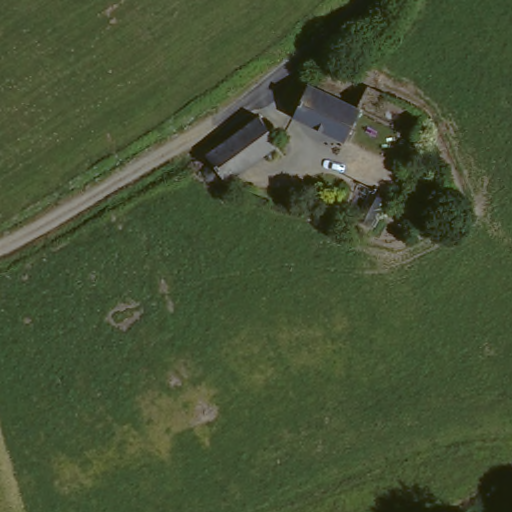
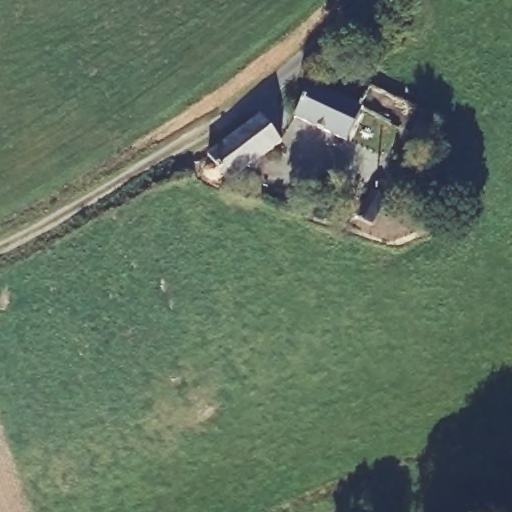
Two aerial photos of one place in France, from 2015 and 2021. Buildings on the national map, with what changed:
unchanged [(312,81),(362,104),(348,136),(297,112),(311,81),(312,81)]
unchanged [(283,140),(231,176),(226,171),(220,173),(212,173),(207,169),(207,166),(209,161),(212,158),(215,156),(210,149),(262,113),(283,140)]
unchanged [(356,217),(370,191),(385,199),(373,223),(371,225),(356,217)]

